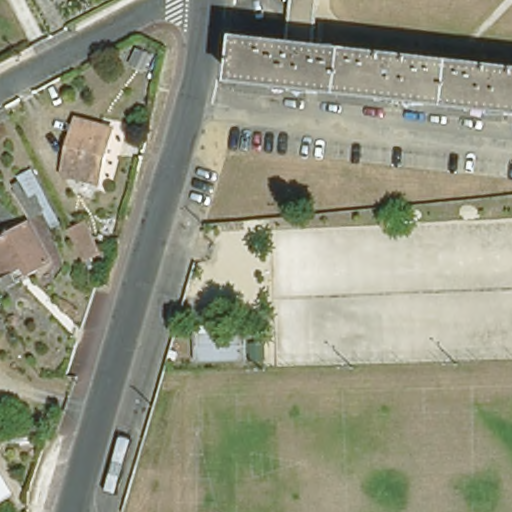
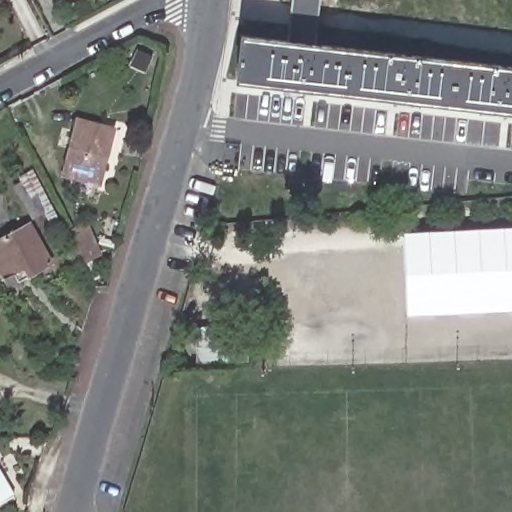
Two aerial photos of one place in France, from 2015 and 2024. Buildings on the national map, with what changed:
unchanged [(322,0),(316,51),(294,49),(299,0),(322,0)]
unchanged [(244,43),(294,49),(316,51),(512,73),(512,116),(239,85),(244,43)]
unchanged [(96,184),(61,175),(75,122),(111,131),(96,184)]
unchanged [(14,180),(34,169),(60,218),(53,223),(44,206),(31,212),(14,180)]
unchanged [(0,268),(0,235),(29,219),(50,259),(28,271),(8,282),(4,275),(0,268)]
unchanged [(84,223),(99,251),(83,259),(69,232),(84,223)]
new [(512,227),(512,309),(407,314),(403,232),(512,227)]
unchanged [(244,322),(246,357),(195,363),(193,325),(244,322)]
unchanged [(5,430),(43,427),(43,436),(26,437),(0,440),(0,427),(5,426),(5,430)]
unchanged [(0,505),(0,478),(11,498),(0,505)]

